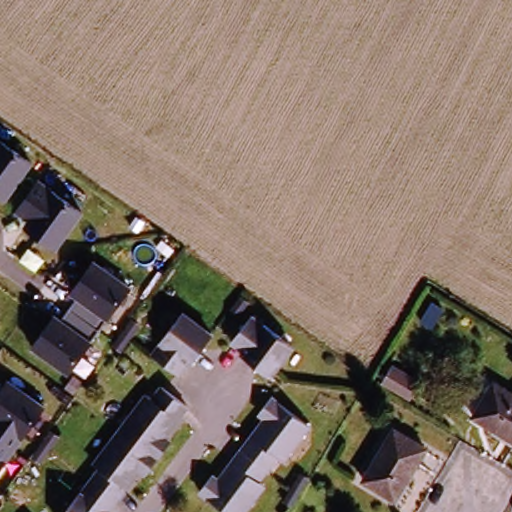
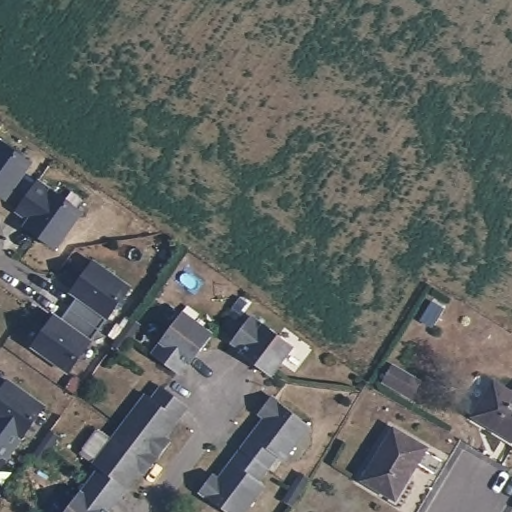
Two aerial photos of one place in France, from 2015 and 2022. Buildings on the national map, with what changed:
unchanged [(6,201),(0,197),(0,139),(35,163),(6,201)]
unchanged [(85,213),(57,251),(23,229),(27,221),(15,213),(38,178),(85,213)]
unchanged [(132,286),(69,377),(31,348),(55,314),(62,318),(77,298),(70,293),(94,258),(132,286)]
unchanged [(245,299),(253,305),(243,317),(236,311),(245,299)]
unchanged [(208,336),(197,350),(196,349),(186,361),(184,364),(183,363),(174,374),(149,355),(158,343),(157,342),(178,314),(208,336)]
unchanged [(258,327),(260,325),(288,347),(266,377),(251,366),(252,365),(251,364),(238,354),(239,352),(231,346),(227,343),(246,317),(258,327)]
unchanged [(0,321),(0,319),(1,320),(0,321)]
unchanged [(130,334),(136,325),(145,331),(135,343),(126,355),(118,349),(127,337),(130,334)]
unchanged [(397,369),(422,384),(415,397),(389,382),(397,369)]
unchanged [(0,472),(0,391),(8,380),(46,405),(0,472)]
unchanged [(471,416),(490,382),(511,394),(512,392),(512,440),(471,416)]
unchanged [(172,403),(182,412),(172,425),(170,423),(156,441),(165,447),(155,461),(140,479),(131,473),(118,490),(120,492),(111,504),(105,512),(63,512),(75,497),(76,498),(86,485),(95,474),(89,469),(117,433),(142,400),(147,405),(157,392),(161,395),(172,403)]
unchanged [(271,458),(263,468),(251,483),(259,488),(241,512),(219,512),(193,492),(206,476),(215,483),(228,465),(226,463),(237,449),(246,437),(248,439),(262,421),(254,414),(266,398),(305,429),(278,464),(271,458)]
unchanged [(363,476),(372,462),(393,427),(424,445),(403,480),(395,495),(363,476)]
unchanged [(55,434),(63,440),(54,452),(45,464),(37,458),(46,446),(55,434)]
unchanged [(296,509),(287,504),(296,490),(303,479),(311,484),(303,497),(296,509)]

